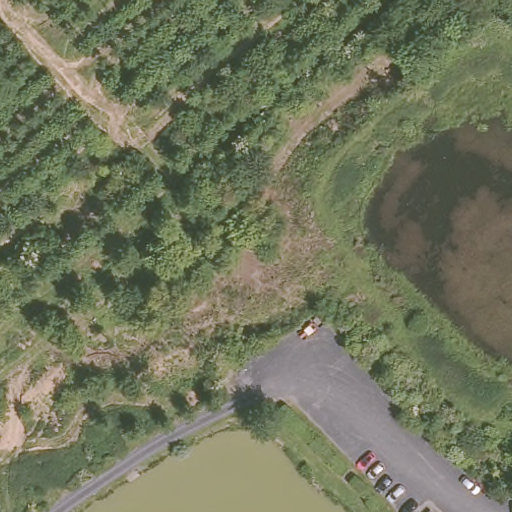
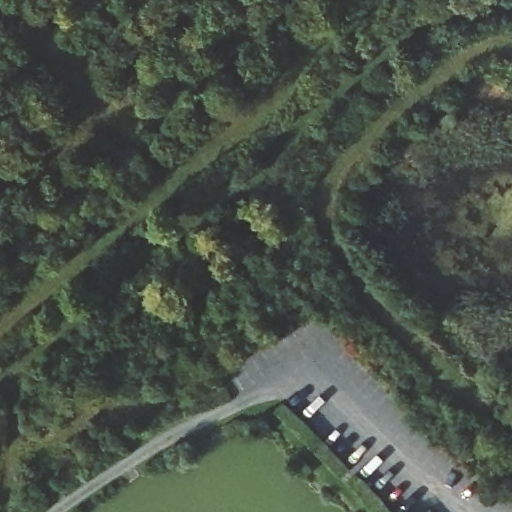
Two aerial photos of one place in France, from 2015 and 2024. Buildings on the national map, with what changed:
unchanged [(436,512),(426,512),(431,507),(436,512)]

